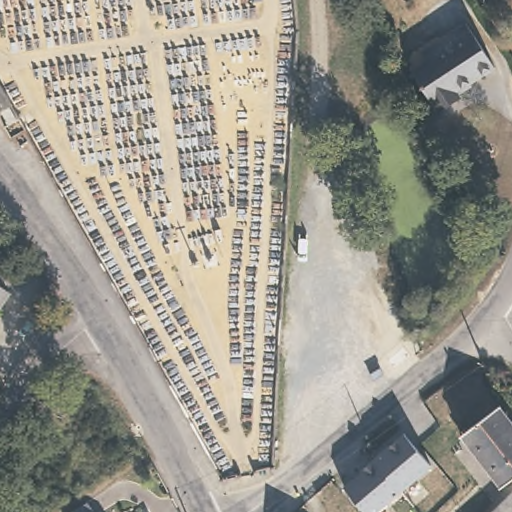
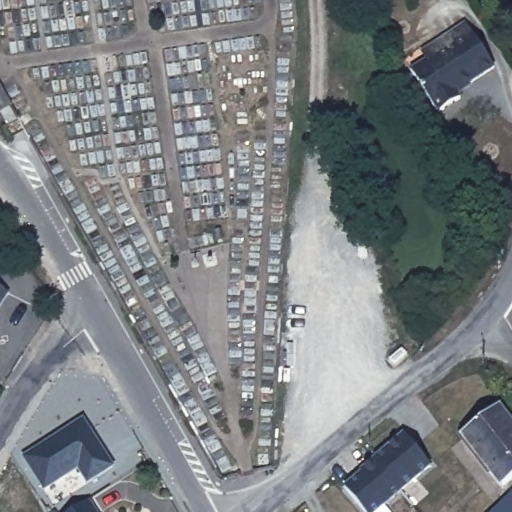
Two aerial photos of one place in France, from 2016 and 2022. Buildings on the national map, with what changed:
unchanged [(452,91),(456,98),(435,111),(432,105),(430,106),(408,69),(424,59),(419,50),(438,39),(464,23),(492,67),(452,91)]
unchanged [(1,108),(0,109),(0,92),(8,105),(15,118),(9,122),(1,108)]
unchanged [(0,296),(0,282),(6,286),(0,296)]
unchanged [(512,428),(512,476),(498,487),(459,436),(495,406),(512,428)]
new [(84,417),(116,466),(88,484),(77,469),(45,490),(23,456),(84,417)]
unchanged [(363,475),(362,473),(405,437),(429,465),(398,491),(372,512),(364,512),(345,490),(363,475)]
unchanged [(492,512),(512,492),(512,512),(492,512)]
new [(100,512),(71,512),(91,499),(100,512)]

